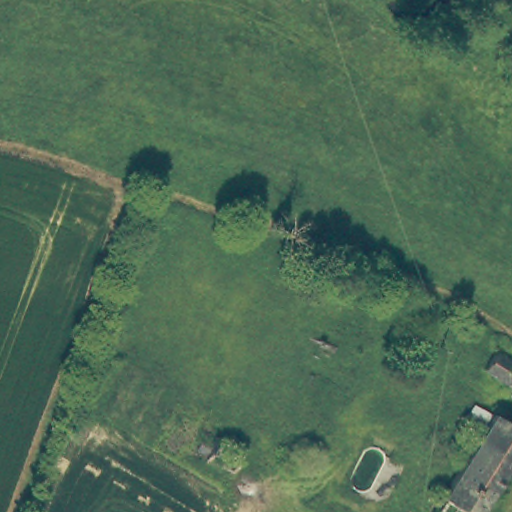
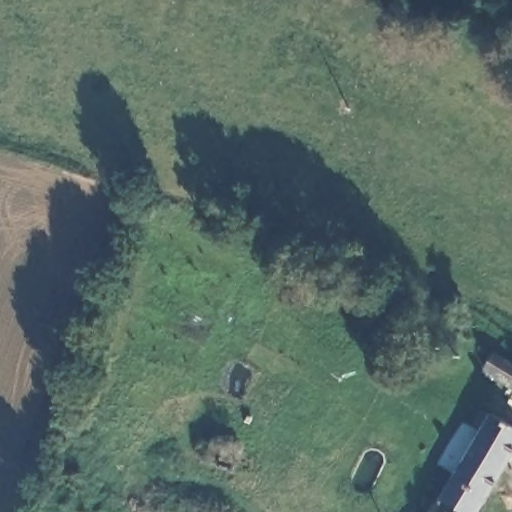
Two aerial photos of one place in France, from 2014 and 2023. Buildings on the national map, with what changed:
unchanged [(491,344),(512,357),(512,380),(481,360),(491,344)]
unchanged [(512,452),(477,512),(432,512),(489,415),(512,428),(512,452)]
unchanged [(217,426),(244,438),(236,463),(206,453),(209,445),(199,442),(204,428),(214,432),(217,426)]

